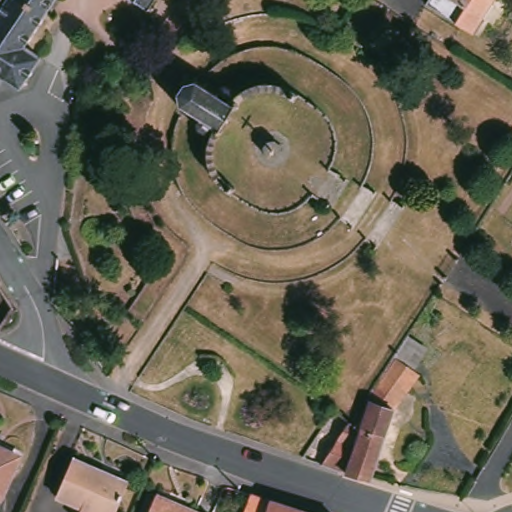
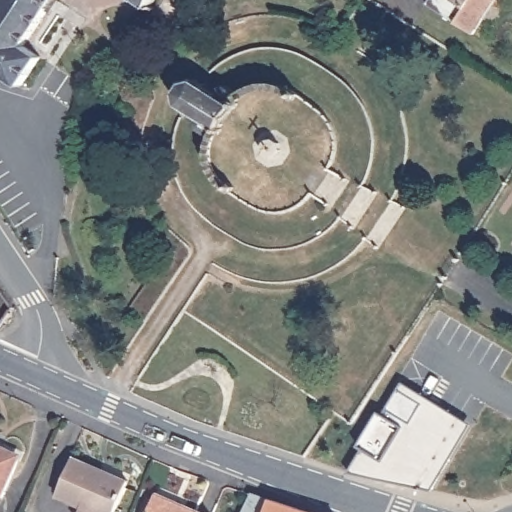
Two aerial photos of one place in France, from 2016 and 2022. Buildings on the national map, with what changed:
unchanged [(52,0),(18,47),(34,59),(16,87),(0,77),(0,0),(52,0)]
unchanged [(132,0),(150,0),(144,8),(132,0)]
unchanged [(434,0),(494,0),(476,27),(434,0)]
unchanged [(185,112),(184,114),(182,112),(183,110),(175,106),(171,108),(170,105),(173,104),(173,100),(173,96),(168,95),(169,92),(173,93),(175,89),(177,85),(175,83),(178,80),(180,83),(187,82),(187,78),(191,79),(191,82),(197,86),(199,84),(202,85),(200,88),(210,94),(213,88),(220,87),(228,93),(229,101),(233,104),(229,110),(228,108),(216,127),(219,128),(214,134),(209,131),(199,135),(193,130),(190,124),(194,118),(185,112)]
demolished [(407,339),(425,350),(414,367),(411,372),(419,377),(393,410),(394,412),(384,437),(351,425),(397,355),(407,339)]
new [(431,489),(350,471),(362,449),(357,446),(378,411),(383,413),(401,382),(470,423),(431,489)]
demolished [(384,437),(369,480),(345,473),(323,467),(351,425),(384,437)]
unchanged [(7,460),(0,478),(0,457),(7,460)]
unchanged [(126,482),(114,512),(78,512),(80,507),(56,495),(72,457),(126,482)]
unchanged [(193,512),(146,512),(153,494),(193,512)]
unchanged [(249,495),(304,512),(242,512),(249,495)]

